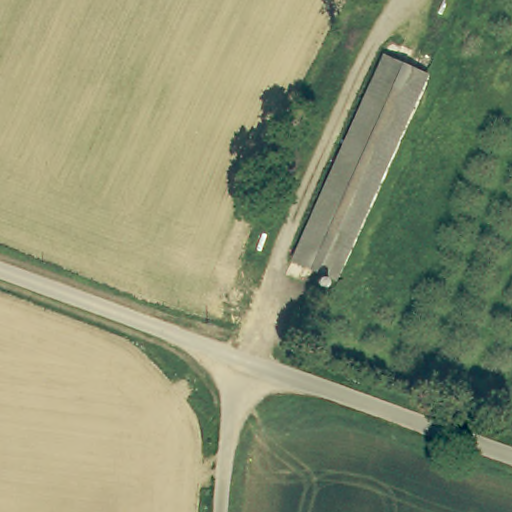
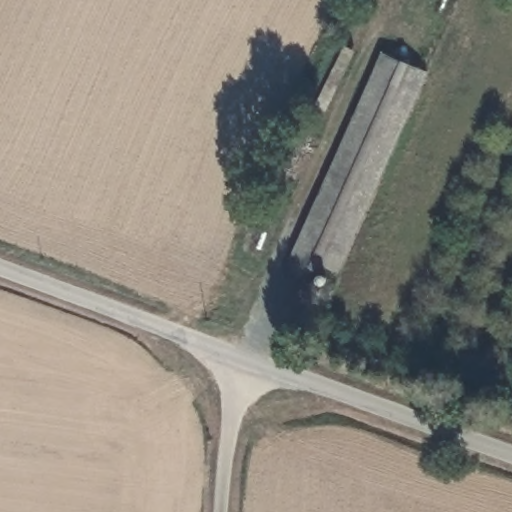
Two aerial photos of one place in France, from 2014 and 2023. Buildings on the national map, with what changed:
unchanged [(424,72),(332,278),(289,259),(382,53),(424,72)]

